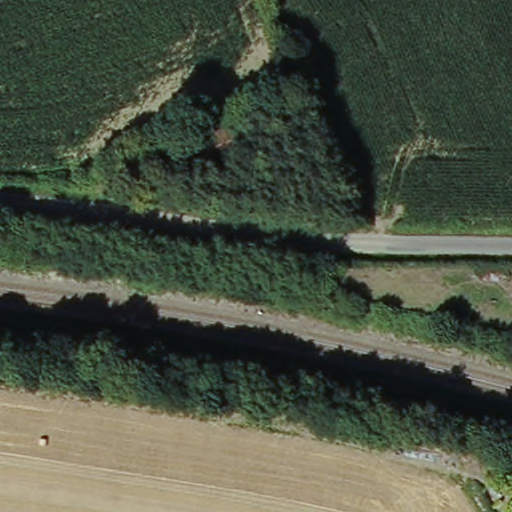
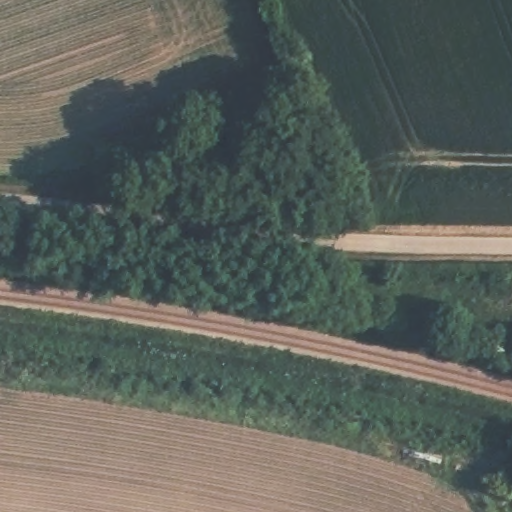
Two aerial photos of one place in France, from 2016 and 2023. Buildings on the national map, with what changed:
unchanged [(209,173),(204,159),(172,170),(162,147),(229,124),(245,119),(254,143),(239,149),(244,162),(209,173)]

